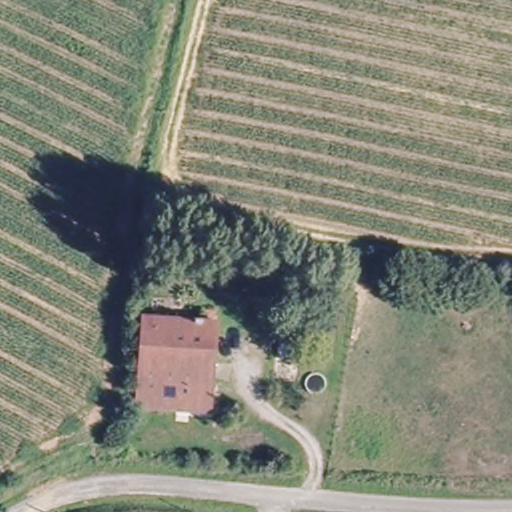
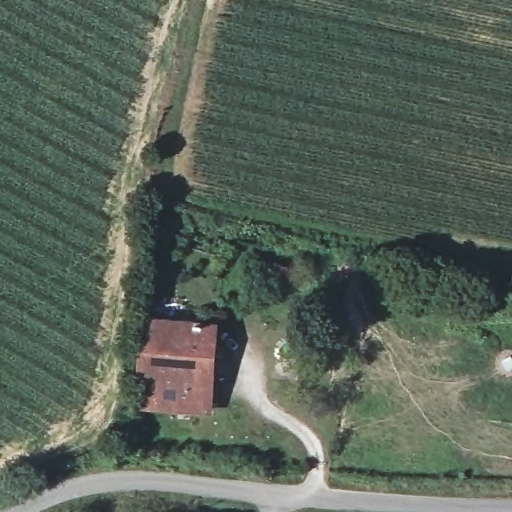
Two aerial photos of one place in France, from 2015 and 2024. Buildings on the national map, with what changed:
unchanged [(137,406),(145,316),(215,322),(209,411),(137,406)]

